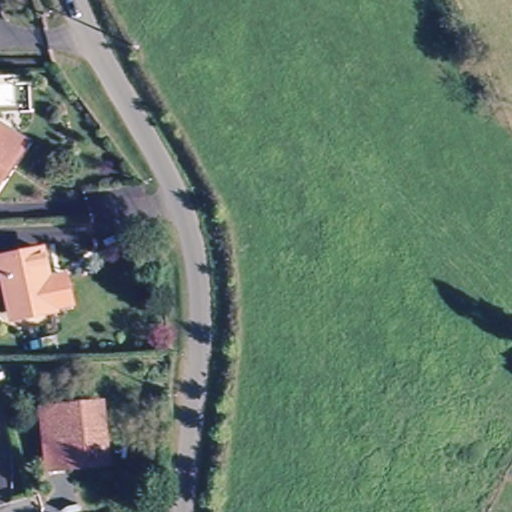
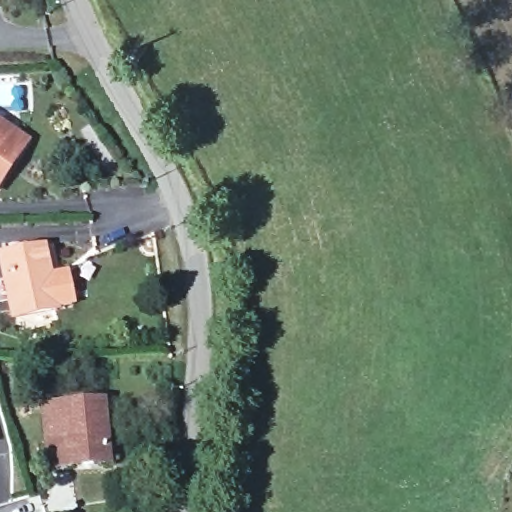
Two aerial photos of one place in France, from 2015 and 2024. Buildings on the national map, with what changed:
unchanged [(21,141),(8,161),(2,170),(0,174),(0,128),(21,141)]
unchanged [(55,306),(13,315),(1,259),(43,250),(55,306)]
unchanged [(96,403),(102,462),(63,466),(61,440),(42,441),(38,408),(96,403)]

